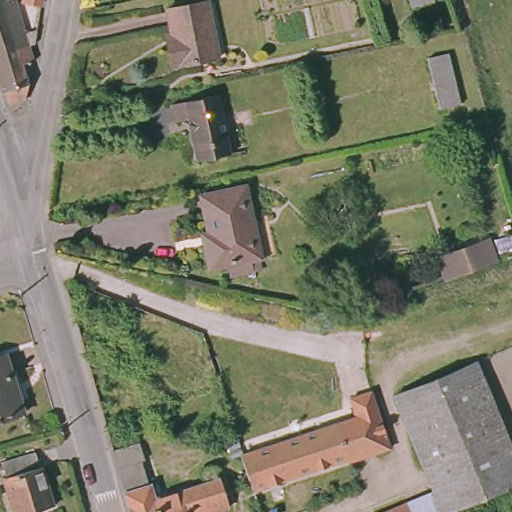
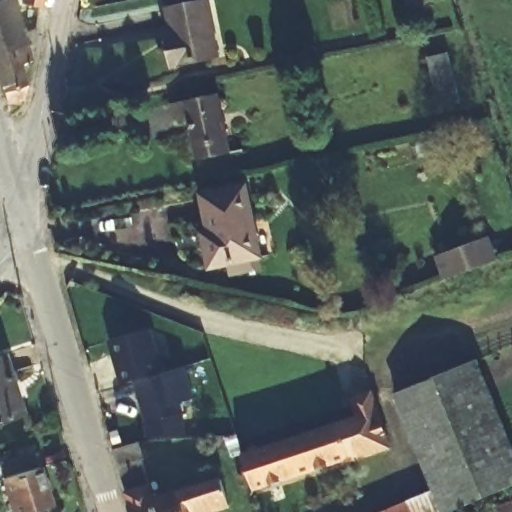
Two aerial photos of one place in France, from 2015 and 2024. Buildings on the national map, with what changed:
unchanged [(20,4),(20,0),(40,0),(38,8),(20,4)]
unchanged [(407,0),(418,0),(407,3),(407,0)]
unchanged [(0,53),(0,5),(13,1),(17,14),(23,13),(25,20),(18,23),(25,45),(0,53)]
unchanged [(219,59),(170,69),(165,45),(173,44),(166,9),(207,1),(219,59)]
unchanged [(25,45),(29,59),(30,64),(18,68),(26,91),(23,110),(25,121),(10,125),(0,92),(0,53),(25,45)]
unchanged [(447,48),(462,98),(441,104),(426,53),(447,48)]
unchanged [(230,154),(195,161),(187,119),(173,121),(170,104),(217,94),(230,154)]
unchanged [(204,272),(197,239),(205,236),(197,199),(241,190),(255,261),(204,272)]
unchanged [(437,249),(487,232),(497,257),(455,274),(447,278),(437,249)]
new [(152,334),(165,378),(125,389),(112,345),(152,334)]
unchanged [(5,357),(25,417),(0,424),(0,358),(5,357)]
unchanged [(512,457),(512,483),(442,512),(389,512),(434,493),(392,396),(472,363),(512,457)]
new [(187,371),(197,403),(182,407),(186,419),(187,438),(151,441),(150,424),(138,386),(187,371)]
unchanged [(388,445),(347,459),(347,456),(253,489),(240,452),(333,419),(328,403),(369,389),(388,445)]
unchanged [(218,512),(130,512),(110,448),(138,439),(144,457),(140,459),(152,498),(205,482),(201,469),(212,466),(217,478),(221,476),(227,499),(230,509),(218,512)]
unchanged [(3,487),(5,487),(0,469),(35,459),(40,477),(42,476),(52,512),(11,512),(3,487)]
unchanged [(512,512),(468,512),(467,511),(512,492),(512,512)]

